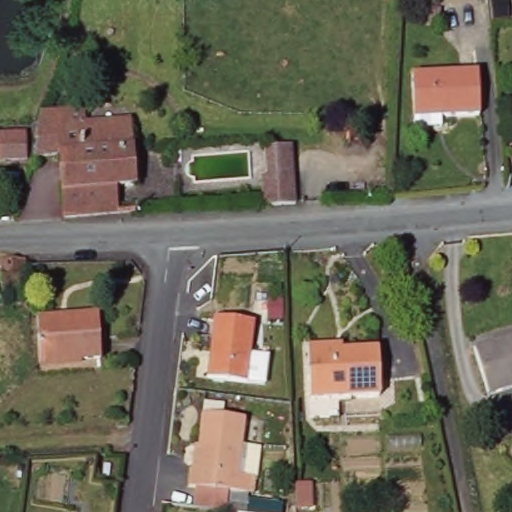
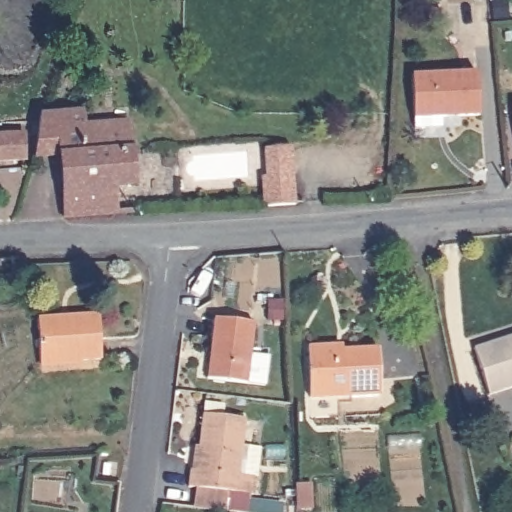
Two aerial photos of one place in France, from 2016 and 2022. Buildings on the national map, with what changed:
unchanged [(415,132),(414,121),(412,77),(480,75),(482,119),(442,120),(442,131),(415,132)]
unchanged [(59,156),(33,158),(34,148),(36,142),(38,132),(39,127),(40,114),(50,113),(79,111),(84,111),(86,125),(89,125),(95,124),(103,123),(115,123),(129,122),(129,126),(130,137),(130,139),(134,185),(114,187),(116,214),(114,214),(80,216),(66,218),(63,189),(59,156)]
unchanged [(24,133),(26,159),(0,160),(0,134),(24,133)]
unchanged [(293,147),(297,202),(264,204),(263,177),(268,176),(267,149),(293,147)]
unchanged [(24,288),(4,290),(0,290),(0,248),(21,246),(24,288)]
unchanged [(253,320),(246,382),(208,378),(214,316),(253,320)]
unchanged [(97,317),(100,360),(40,363),(37,320),(97,317)]
unchanged [(512,387),(492,392),(480,344),(512,336),(512,387)]
unchanged [(337,346),(337,351),(381,348),(383,393),(314,398),(312,347),(337,346)]
unchanged [(217,501),(217,509),(185,506),(187,486),(180,485),(182,468),(188,469),(194,412),(236,417),(231,473),(242,475),(240,492),(239,504),(217,501)]
unchanged [(104,456),(105,457),(103,467),(97,465),(99,455),(104,456)]
unchanged [(303,477),(304,500),(291,501),(289,478),(303,477)]
unchanged [(242,503),(249,500),(251,489),(270,491),(268,502),(273,503),(272,512),(247,512),(241,512),(242,503)]

